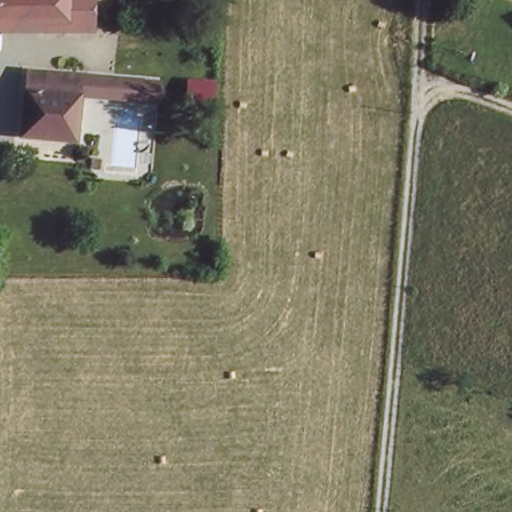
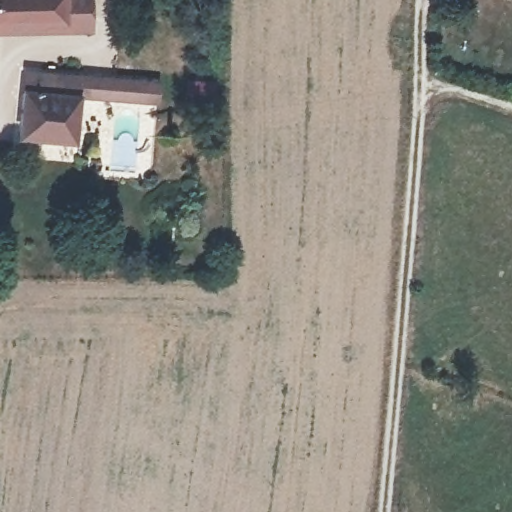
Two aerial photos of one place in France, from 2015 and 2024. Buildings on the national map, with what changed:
unchanged [(72,12),(71,21),(0,20),(0,0),(85,0),(85,11),(72,12)]
unchanged [(20,138),(27,98),(29,80),(41,81),(77,83),(75,99),(70,142),(20,138)]
unchanged [(156,87),(155,103),(75,99),(77,83),(156,87)]

